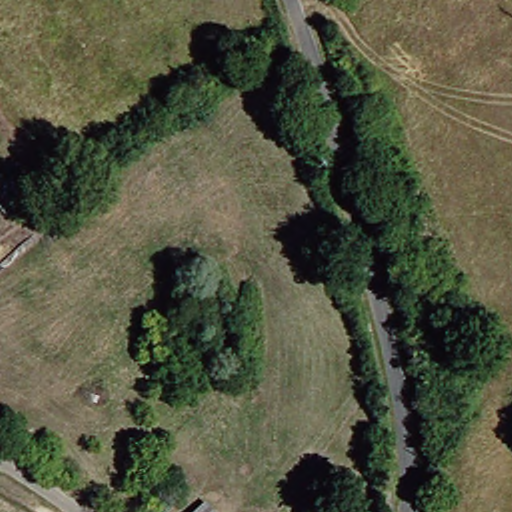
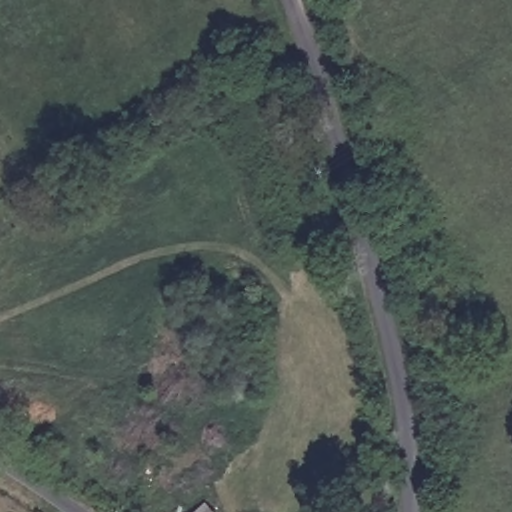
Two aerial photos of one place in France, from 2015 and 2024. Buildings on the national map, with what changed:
unchanged [(209,512),(185,512),(202,502),(209,512)]

